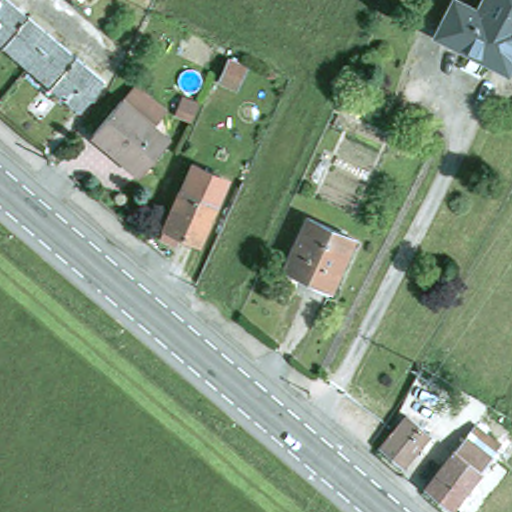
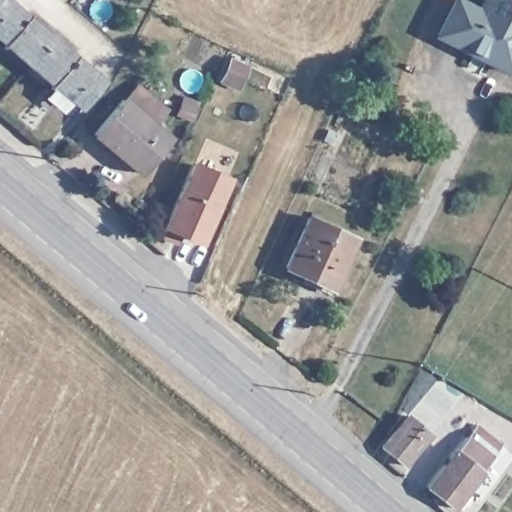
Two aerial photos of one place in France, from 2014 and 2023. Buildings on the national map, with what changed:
unchanged [(27,62),(0,39),(0,0),(7,0),(49,36),(27,62)]
unchanged [(460,0),(483,12),(489,0),(512,0),(512,70),(442,35),(460,0)]
unchanged [(101,81),(80,107),(27,62),(49,36),(101,81)]
unchanged [(98,129),(127,95),(174,135),(152,160),(145,168),(126,152),(98,129)]
unchanged [(215,206),(198,242),(179,235),(176,239),(166,235),(169,230),(164,228),(182,191),(187,193),(195,179),(215,187),(208,202),(215,206)]
unchanged [(285,270),(307,217),(354,239),(330,291),(285,270)]
unchanged [(429,390),(451,408),(403,466),(380,447),(429,390)]
unchanged [(475,426),(501,447),(465,492),(471,497),(459,510),(454,506),(451,509),(426,487),(475,426)]

